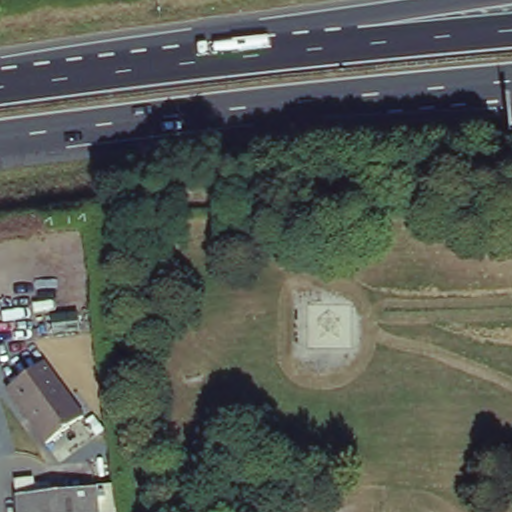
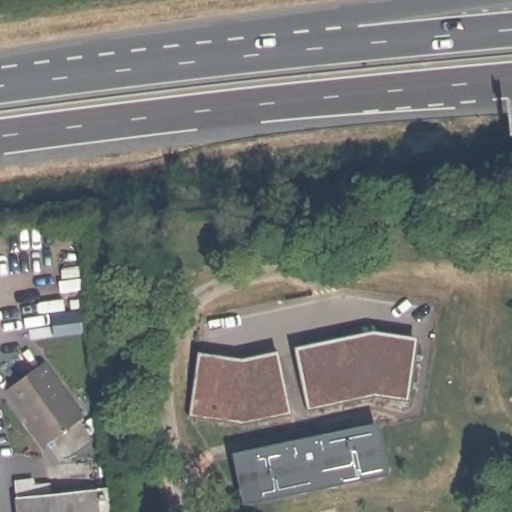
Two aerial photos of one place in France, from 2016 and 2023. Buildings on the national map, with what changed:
new [(374,329),(417,336),(408,399),(374,393),(307,409),(296,346),(374,329)]
new [(243,358),(277,351),(291,414),(243,424),(189,418),(199,354),(243,358)]
unchanged [(45,444),(6,392),(42,365),(81,418),(45,444)]
new [(377,419),(389,469),(242,500),(234,449),(377,419)]
unchanged [(94,484),(97,512),(17,512),(15,493),(94,484)]

